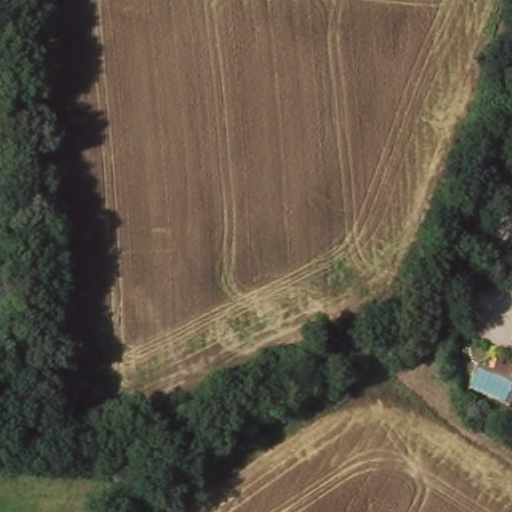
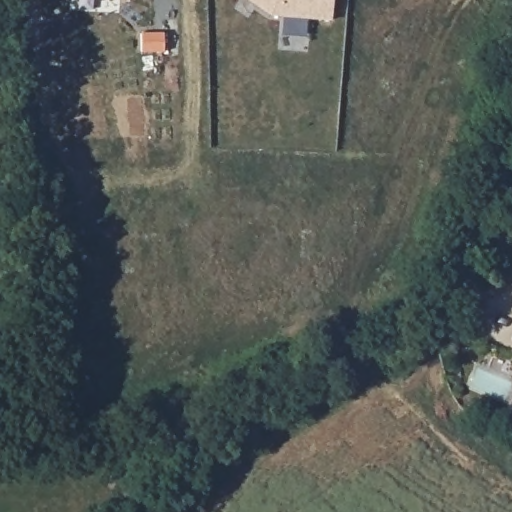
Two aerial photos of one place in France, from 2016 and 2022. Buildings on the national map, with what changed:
new [(332,19),(272,14),(251,0),(334,0),(332,19)]

